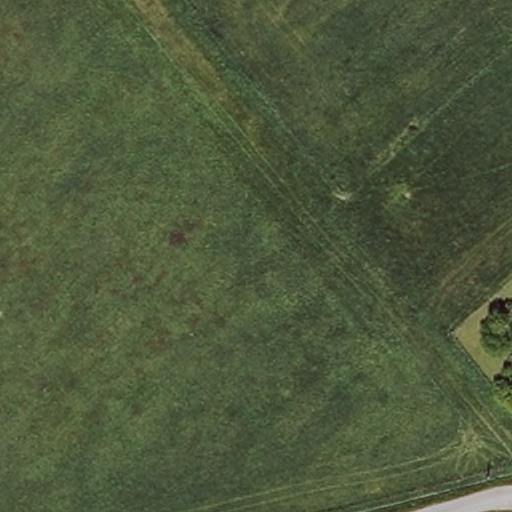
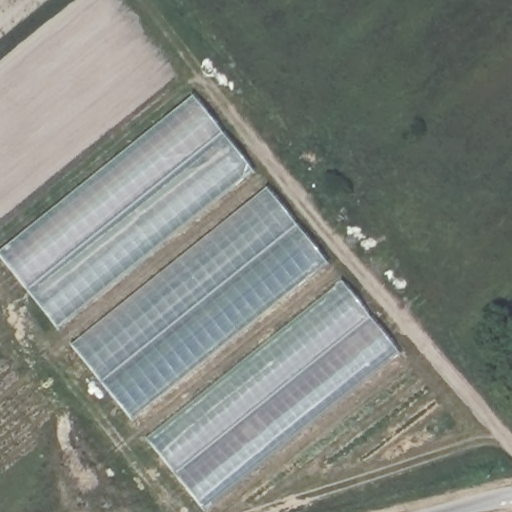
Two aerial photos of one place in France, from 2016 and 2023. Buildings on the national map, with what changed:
new [(193,96),(252,171),(56,329),(0,260),(0,250),(193,96)]
new [(265,189),(327,264),(130,422),(70,346),(265,189)]
new [(342,282),(397,353),(202,512),(145,440),(342,282)]

